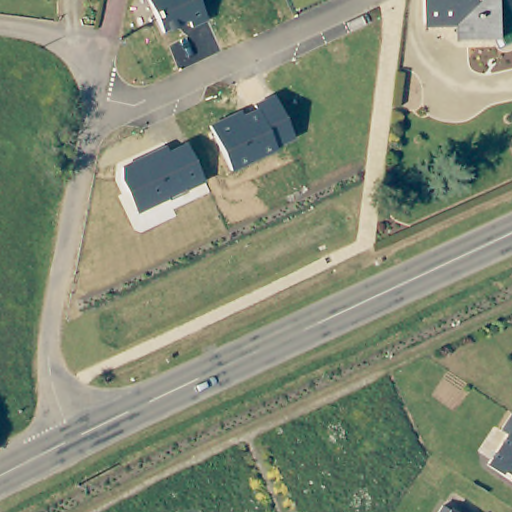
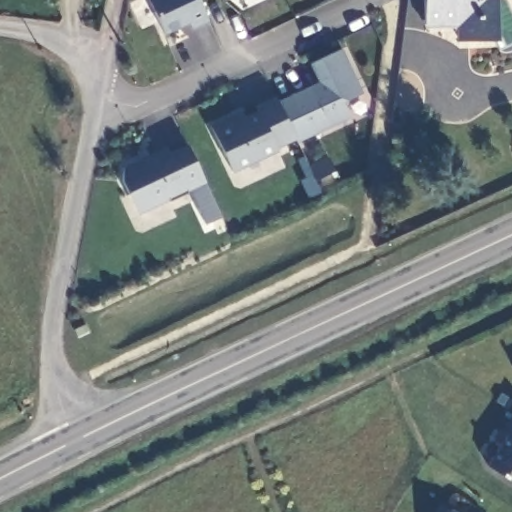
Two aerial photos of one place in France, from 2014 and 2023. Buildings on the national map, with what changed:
unchanged [(192,30),(188,22),(163,33),(148,0),(198,0),(209,23),(192,30)]
unchanged [(456,26),(421,25),(423,0),(491,0),(492,40),(457,41),(456,26)]
new [(276,98),(316,79),(310,65),(342,50),(363,92),(343,102),(350,117),(295,140),(276,98)]
unchanged [(275,149),(277,152),(230,172),(209,125),(241,111),(243,115),(256,109),(254,104),(275,96),(295,140),(275,149)]
unchanged [(137,215),(121,180),(121,166),(166,146),(168,150),(186,142),(205,183),(137,215)]
unchanged [(487,462),(507,431),(501,427),(512,410),(512,477),(487,462)]
unchanged [(449,506),(449,505),(461,512),(436,512),(442,501),(449,506)]

